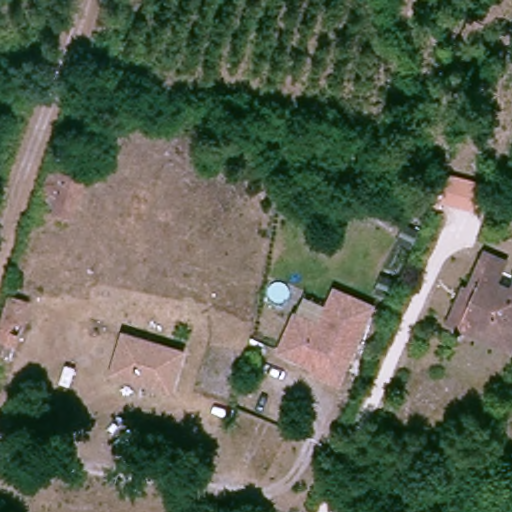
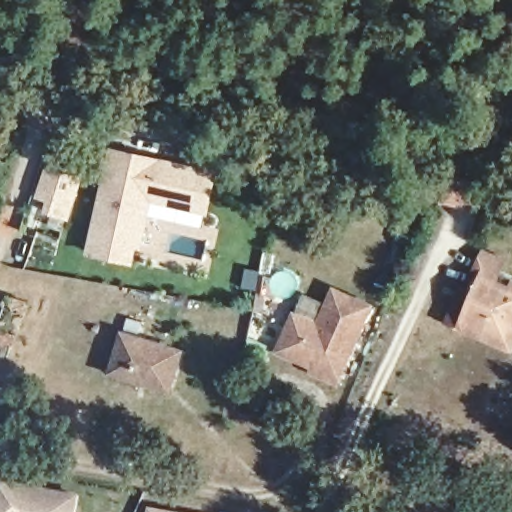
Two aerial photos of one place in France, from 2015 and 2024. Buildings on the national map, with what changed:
new [(87,255),(110,147),(219,175),(209,214),(154,200),(142,249),(137,248),(134,265),(87,255)]
new [(45,212),(47,200),(36,196),(49,155),(85,165),(70,220),(45,212)]
demolished [(87,165),(82,180),(62,172),(66,160),(87,165)]
new [(448,170),(485,179),(480,203),(438,194),(448,170)]
demolished [(82,181),(70,221),(55,216),(67,177),(82,181)]
unchanged [(413,245),(400,240),(406,223),(420,229),(413,245)]
unchanged [(466,286),(472,288),(481,265),(486,251),(505,258),(500,272),(497,283),(512,289),(512,346),(466,327),(452,322),(466,286)]
unchanged [(316,366),(280,351),(290,328),(295,314),(320,325),(335,288),(372,304),(340,380),(323,374),(315,370),(316,366)]
unchanged [(0,341),(0,318),(6,300),(26,305),(14,345),(0,341)]
unchanged [(185,355),(172,395),(112,375),(125,336),(185,355)]
demolished [(0,355),(10,357),(0,386),(0,355)]
new [(0,479),(79,493),(75,512),(0,512),(0,479)]
new [(149,506),(181,512),(148,512),(149,506)]

